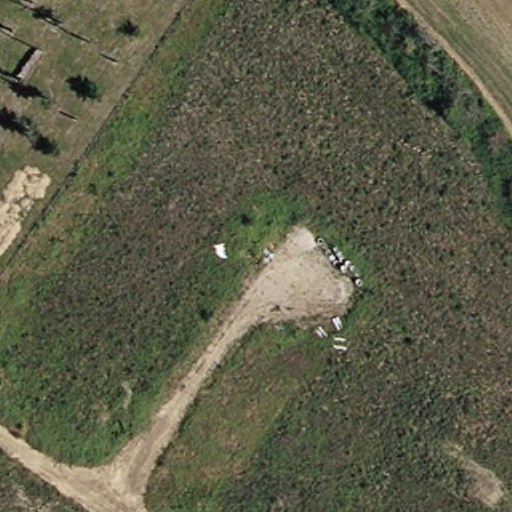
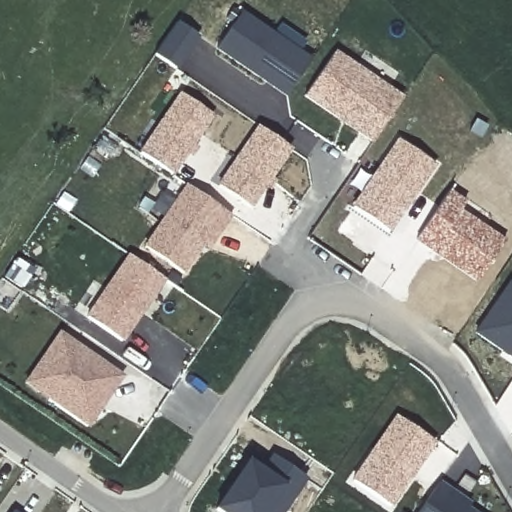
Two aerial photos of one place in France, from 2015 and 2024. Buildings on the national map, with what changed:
new [(216,49),(240,14),(310,62),(285,97),(271,88),(274,83),(271,87),(265,83),(216,49)]
new [(175,71),(153,56),(175,23),(197,38),(175,71)]
new [(303,96),(333,53),(402,99),(372,143),(358,134),(336,119),(303,96)]
new [(194,146),(197,150),(190,159),(187,156),(173,177),(137,154),(177,94),(212,118),(194,146)]
new [(271,180),(275,183),(267,192),(263,190),(250,209),(215,186),(255,126),(290,151),(271,180)]
new [(433,166),(387,233),(351,208),(397,141),(433,166)]
new [(203,244),(183,272),(145,246),(188,185),(232,215),(221,231),(209,248),(203,244)]
new [(458,212),(504,242),(475,284),(413,242),(448,191),(465,204),(458,212)]
new [(140,313),(135,310),(132,315),(137,317),(120,342),(86,319),(128,256),(163,280),(140,313)]
new [(475,333),(508,285),(512,287),(512,358),(508,356),(501,352),(475,333)]
new [(137,318),(132,315),(135,310),(140,313),(137,318)]
new [(85,419),(54,397),(31,381),(45,361),(65,333),(126,376),(116,389),(92,424),(85,419)]
new [(390,508),(351,481),(395,416),(434,443),(390,508)]
new [(284,512),(215,512),(213,511),(246,461),(260,471),(267,456),(305,482),(284,512)]
new [(455,492),(474,504),(471,509),(475,512),(423,512),(443,483),(455,492)]

